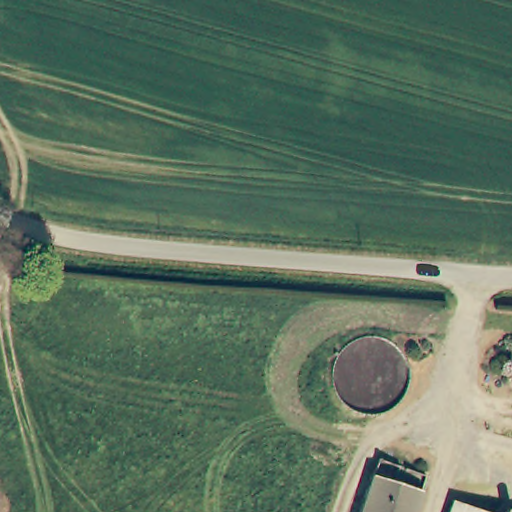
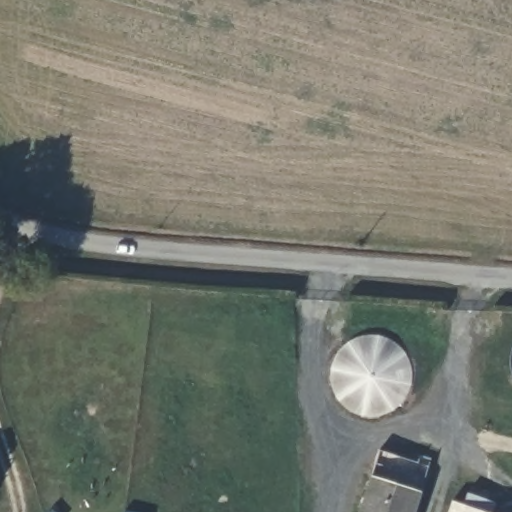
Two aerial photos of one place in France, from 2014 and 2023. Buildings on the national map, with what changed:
new [(346,407),(340,401),(336,395),(332,386),(331,376),(332,368),(335,358),(341,348),(350,341),(359,337),(368,335),(370,335),(385,337),(395,341),(401,347),(407,355),(412,366),(413,377),(412,386),(404,402),(396,409),(386,414),(376,416),(366,416),(362,415),(359,414),(346,407)]
unchanged [(418,512),(361,512),(373,475),(424,492),(418,512)]
unchanged [(494,510),(494,512),(452,512),(456,498),(494,510)]
unchanged [(500,512),(494,512),(494,510),(500,512)]

